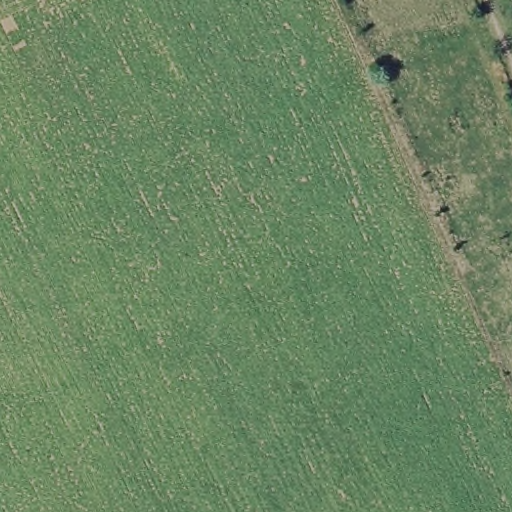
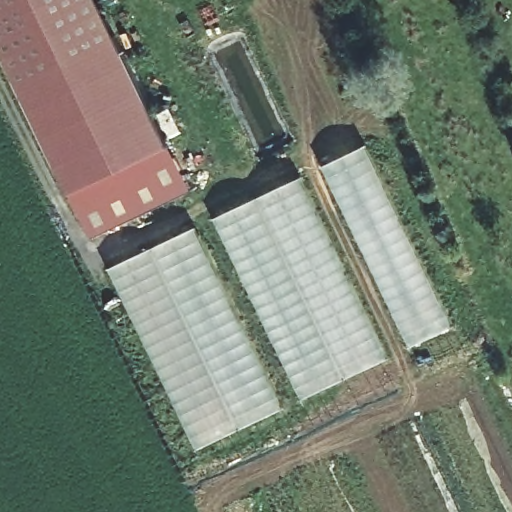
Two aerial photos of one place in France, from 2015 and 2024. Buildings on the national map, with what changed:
new [(88,239),(0,48),(0,0),(100,0),(189,192),(88,239)]
new [(456,325),(413,346),(323,166),(369,143),(456,325)]
new [(389,357),(302,399),(213,218),(302,176),(389,357)]
new [(283,408),(198,449),(108,268),(196,226),(283,408)]

